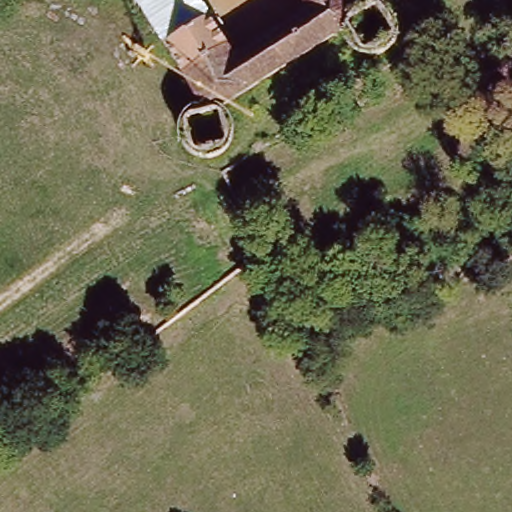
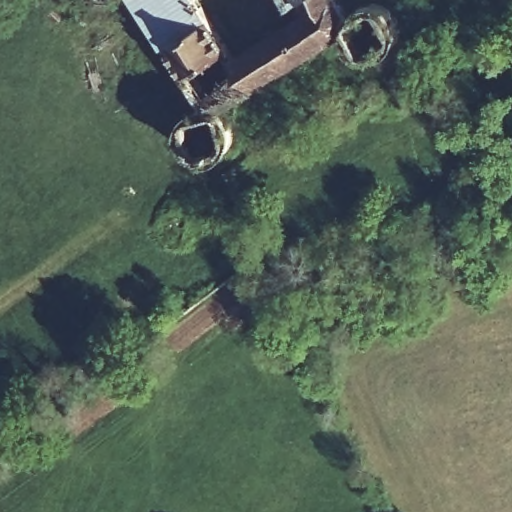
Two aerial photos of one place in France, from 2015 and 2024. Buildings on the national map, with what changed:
unchanged [(346,23),(355,36),(209,114),(145,0),(202,0),(235,47),(305,13),(303,0),(344,0),(355,18),(346,23)]

